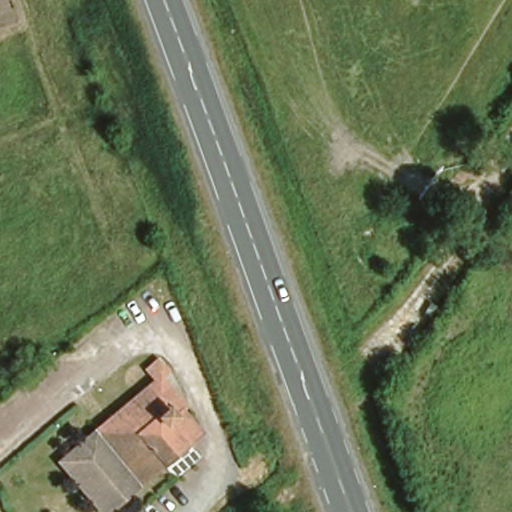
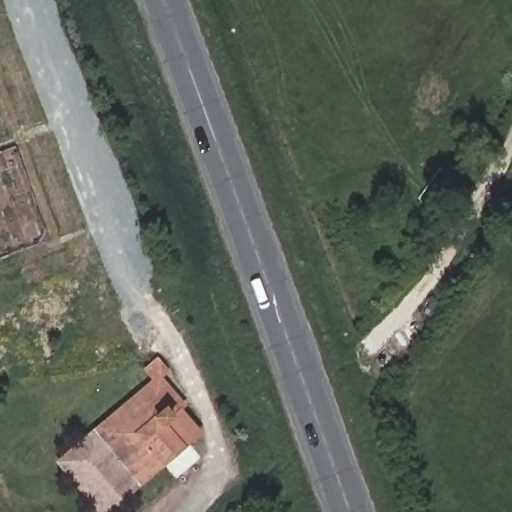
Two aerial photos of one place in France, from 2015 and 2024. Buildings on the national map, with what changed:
unchanged [(144,388),(136,379),(149,367),(183,406),(174,414),(194,436),(136,487),(91,435),(144,388)]
unchanged [(136,487),(122,499),(108,512),(96,512),(56,466),(64,459),(78,446),(91,435),(136,487)]

